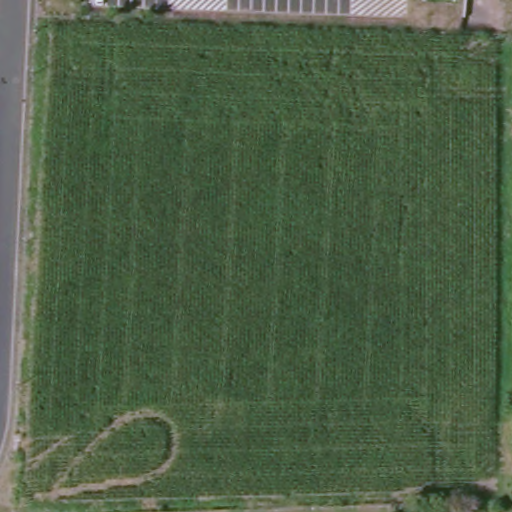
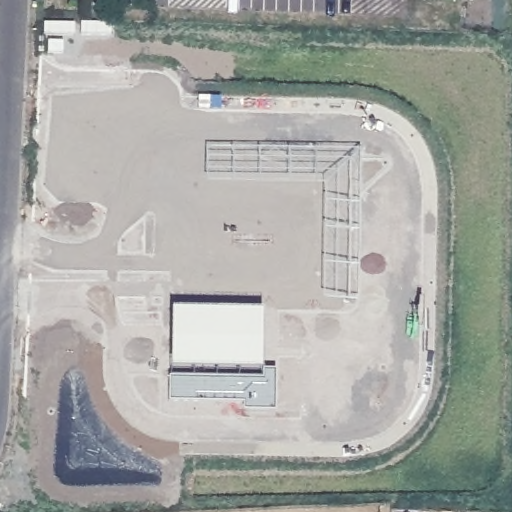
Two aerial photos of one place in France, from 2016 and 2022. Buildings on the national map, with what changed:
new [(261,298),(263,368),(173,364),(175,301),(261,298)]
new [(170,399),(170,372),(265,377),(264,369),(278,369),(277,407),(247,407),(247,400),(170,399)]

